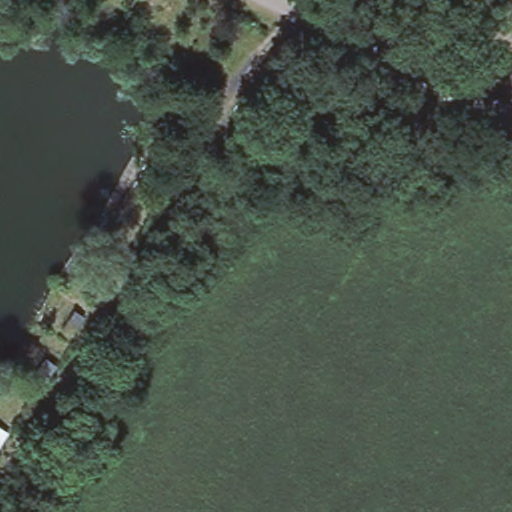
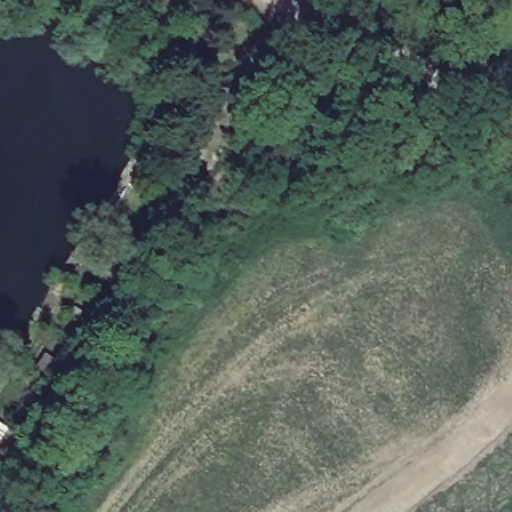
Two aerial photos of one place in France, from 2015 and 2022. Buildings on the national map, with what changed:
[]

